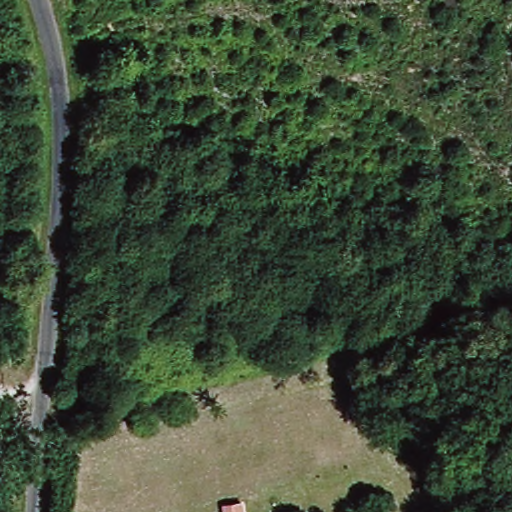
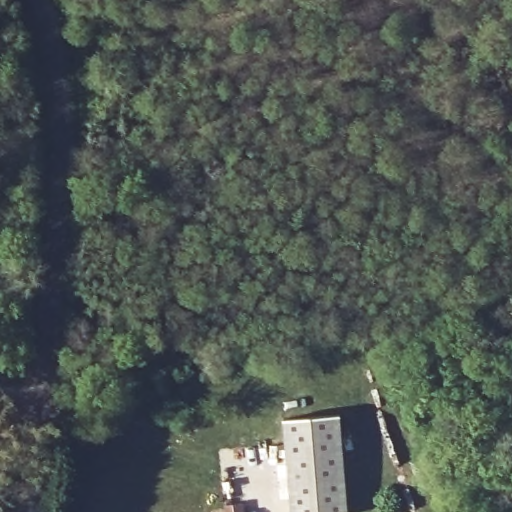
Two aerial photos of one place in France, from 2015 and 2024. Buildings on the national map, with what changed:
new [(341,415),(349,512),(293,512),(285,420),(341,415)]

